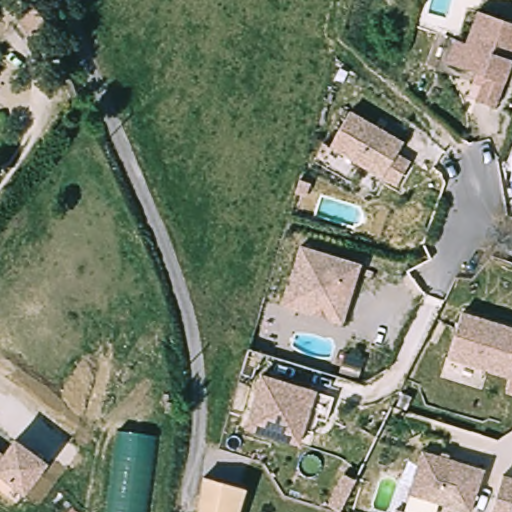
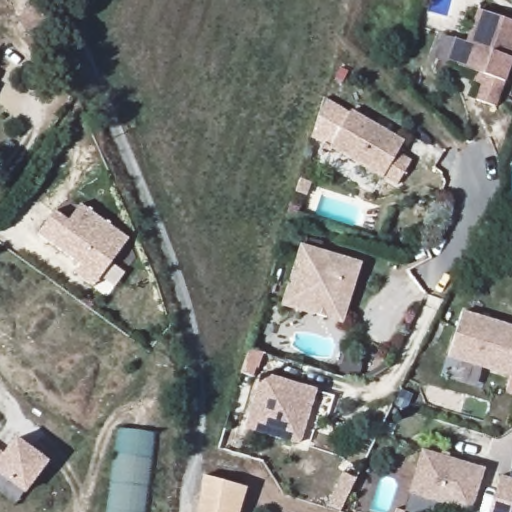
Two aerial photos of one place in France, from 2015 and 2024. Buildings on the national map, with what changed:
unchanged [(454,66),(444,61),(452,38),(462,41),(474,8),(512,21),(512,50),(492,107),(473,99),(479,84),(470,80),(473,73),(454,66)]
unchanged [(330,146),(350,109),(404,141),(398,151),(412,160),(399,184),(330,146)]
new [(128,239),(92,288),(74,275),(80,266),(37,235),(55,210),(69,220),(81,204),(128,239)]
unchanged [(300,309),(284,304),(301,245),(360,263),(346,314),(344,322),(300,309)]
unchanged [(512,380),(447,360),(461,315),(512,330),(512,394),(508,393),(512,380)]
unchanged [(246,429),(262,375),(316,392),(299,445),(246,429)]
unchanged [(162,433),(152,512),(109,512),(121,428),(162,433)]
unchanged [(44,462),(23,492),(0,476),(0,455),(1,455),(12,439),(44,462)]
unchanged [(407,493),(420,449),(483,468),(469,512),(407,493)]
unchanged [(502,474),(512,477),(512,510),(511,512),(490,512),(502,474)]
unchanged [(201,480),(244,492),(239,512),(195,512),(201,480)]

